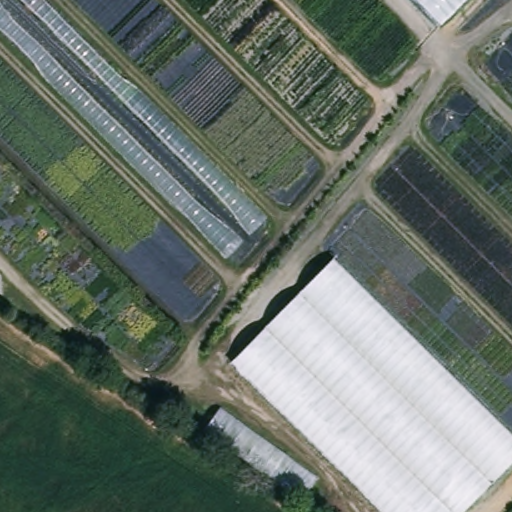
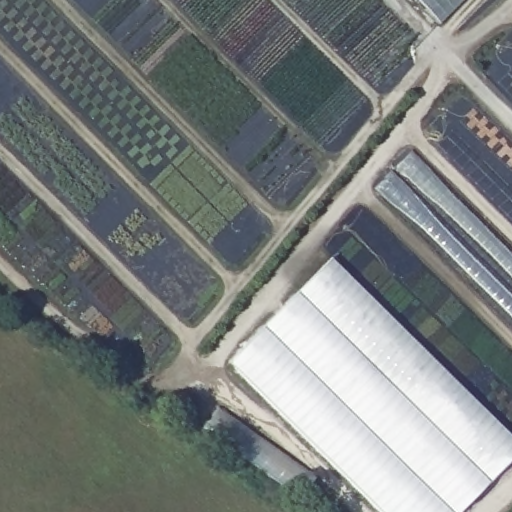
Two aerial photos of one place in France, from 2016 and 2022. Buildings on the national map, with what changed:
unchanged [(438,20),(418,0),(459,0),(438,20)]
new [(373,192),(412,149),(512,248),(512,326),(373,192)]
unchanged [(512,435),(512,460),(460,512),(384,512),(231,361),(332,257),(512,435)]
unchanged [(300,497),(206,431),(221,412),(315,478),(300,497)]

